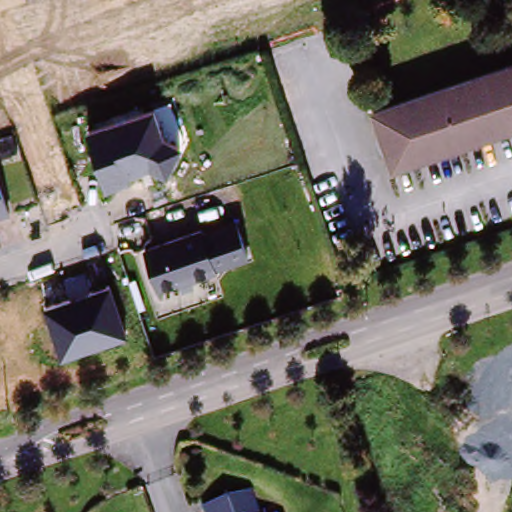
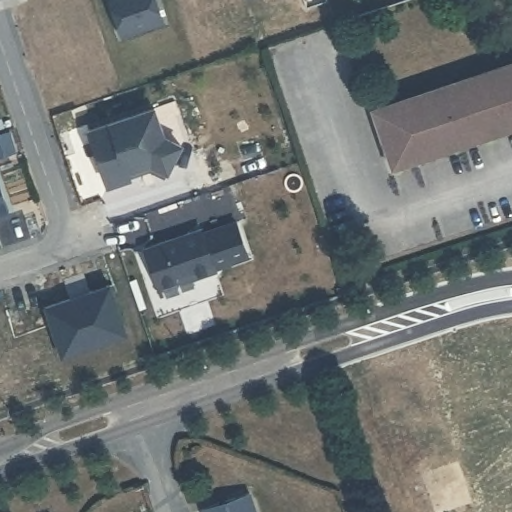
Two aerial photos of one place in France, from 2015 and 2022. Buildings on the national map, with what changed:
new [(122,33),(111,0),(157,0),(163,19),(122,33)]
unchanged [(512,65),(512,128),(393,166),(375,109),(512,65)]
unchanged [(169,174),(152,166),(130,173),(132,179),(107,187),(87,130),(155,108),(166,136),(182,143),(169,174)]
unchanged [(0,187),(9,216),(0,219),(0,187)]
unchanged [(249,260),(217,271),(217,274),(193,281),(195,288),(181,291),(180,284),(159,291),(142,249),(202,228),(202,230),(235,221),(249,260)]
unchanged [(62,357),(47,309),(110,288),(125,336),(62,357)]
unchanged [(196,509),(246,493),(252,512),(197,512),(196,509)]

